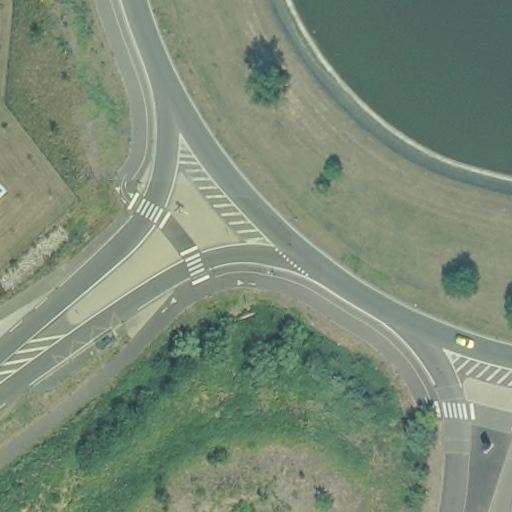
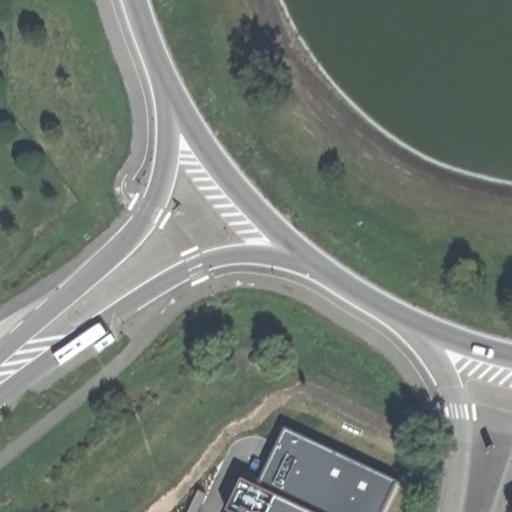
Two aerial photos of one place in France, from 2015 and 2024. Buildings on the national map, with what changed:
new [(242,478),(260,486),(286,428),(397,482),(383,512),(231,512),(227,511),(242,478)]

